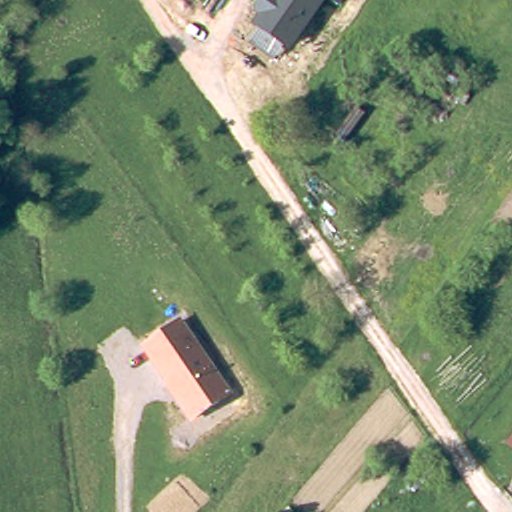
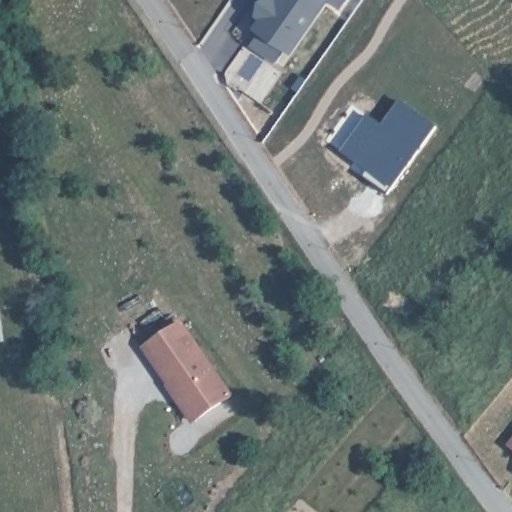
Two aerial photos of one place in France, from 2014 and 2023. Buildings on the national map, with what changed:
unchanged [(281,46),(271,59),(250,44),(257,30),(250,25),(257,15),(254,13),(256,0),(327,0),(290,53),(281,46)]
unchanged [(329,0),(344,0),(340,6),(329,0)]
new [(380,122),(399,98),(438,126),(394,189),(391,187),(387,192),(363,176),(367,170),(340,152),(367,113),(380,122)]
unchanged [(232,393),(191,422),(174,396),(140,347),(180,318),(217,371),(232,393)]

